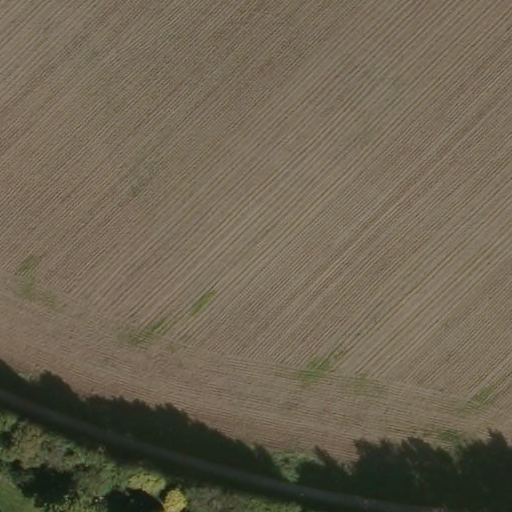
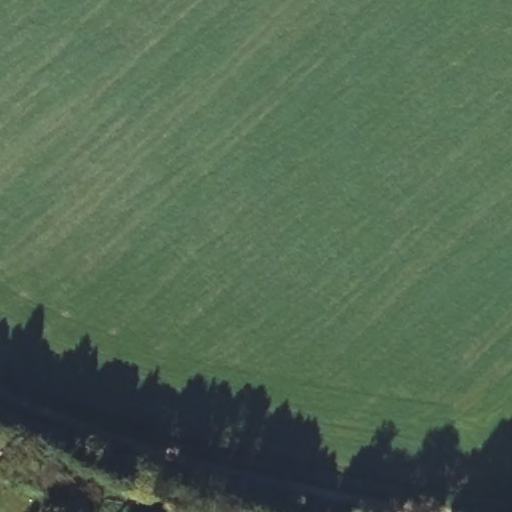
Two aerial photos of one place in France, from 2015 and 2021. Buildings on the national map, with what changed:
[]

